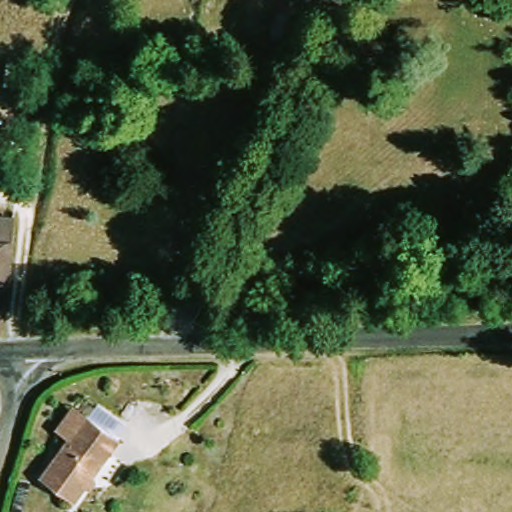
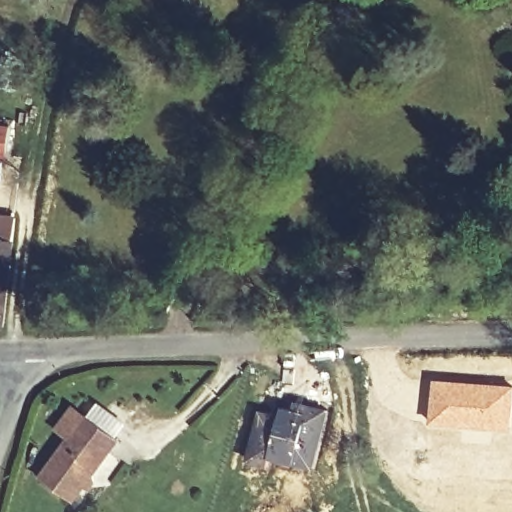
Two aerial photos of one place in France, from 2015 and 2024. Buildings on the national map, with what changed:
unchanged [(3,125),(0,151),(0,125),(3,125)]
unchanged [(14,217),(13,223),(0,299),(0,215),(14,217)]
new [(512,385),(512,418),(511,430),(428,424),(432,378),(512,385)]
new [(279,412),(281,403),(291,406),(293,398),(330,408),(313,472),(269,460),(279,412)]
new [(259,407),(279,412),(269,460),(268,465),(245,459),(259,407)]
unchanged [(81,443),(70,433),(89,409),(130,445),(82,507),(52,481),(81,443)]

